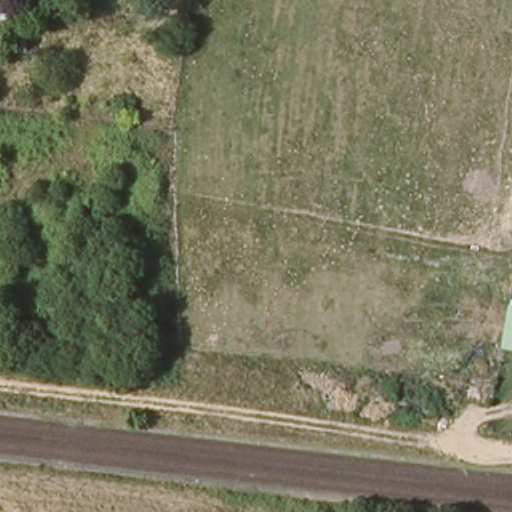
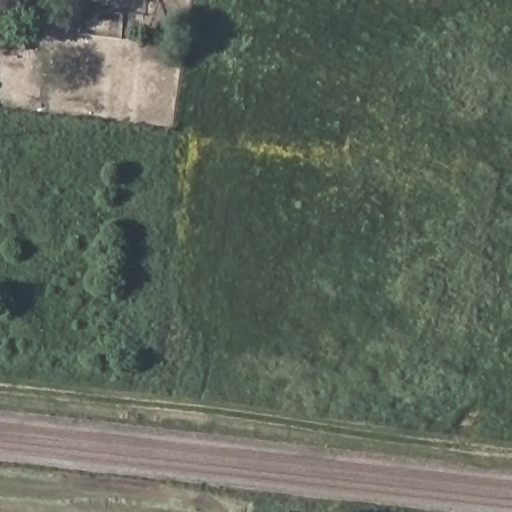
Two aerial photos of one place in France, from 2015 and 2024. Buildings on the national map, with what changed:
demolished [(512,347),(501,346),(512,286),(512,347)]

